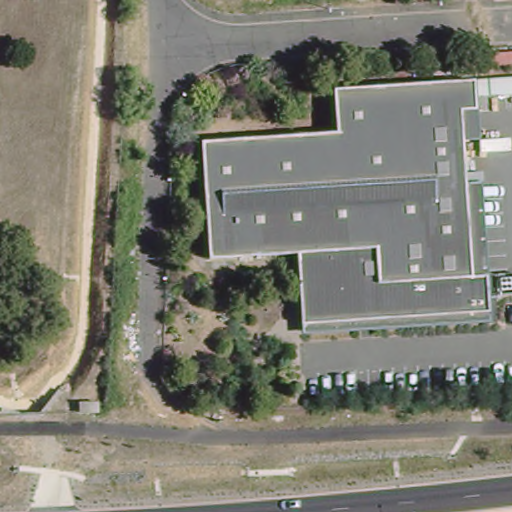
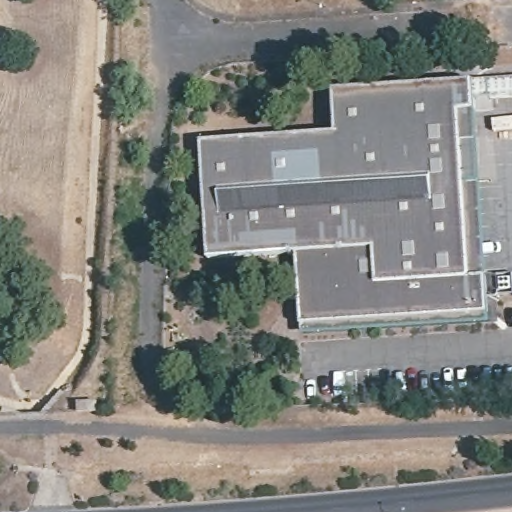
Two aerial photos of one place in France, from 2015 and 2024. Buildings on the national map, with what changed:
unchanged [(488,276),(490,312),(301,324),(298,253),(209,259),(201,141),(336,132),(333,88),(512,77),(512,94),(475,96),(476,109),(478,139),(463,140),(465,182),(472,277),(488,276)]
unchanged [(488,276),(472,277),(465,182),(482,181),(488,276)]
unchanged [(491,322),(302,334),(301,324),(490,312),(491,322)]

